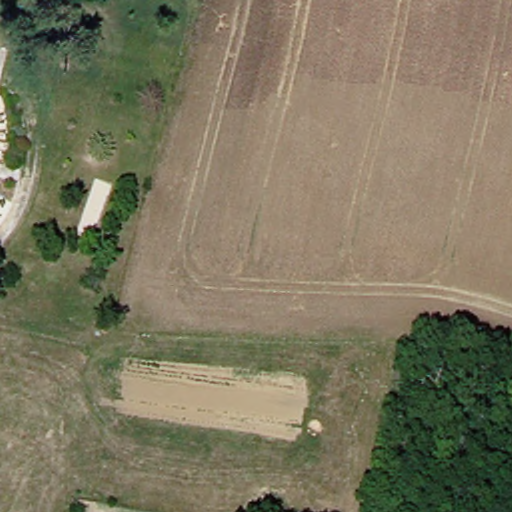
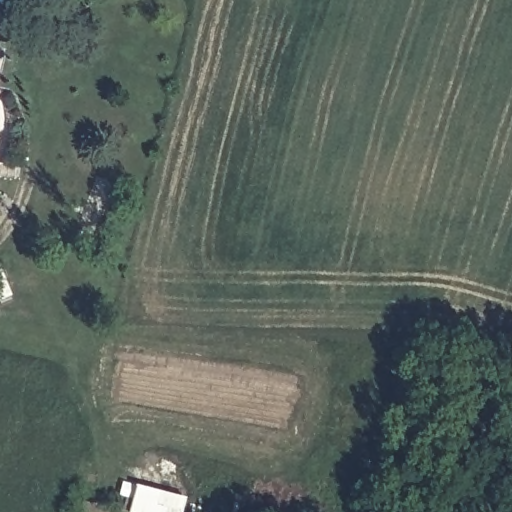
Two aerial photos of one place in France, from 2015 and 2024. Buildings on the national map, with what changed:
new [(130,511),(139,483),(189,499),(184,512),(133,512),(130,511)]

